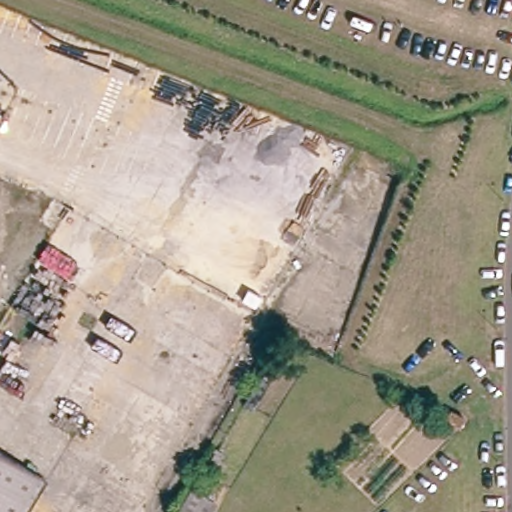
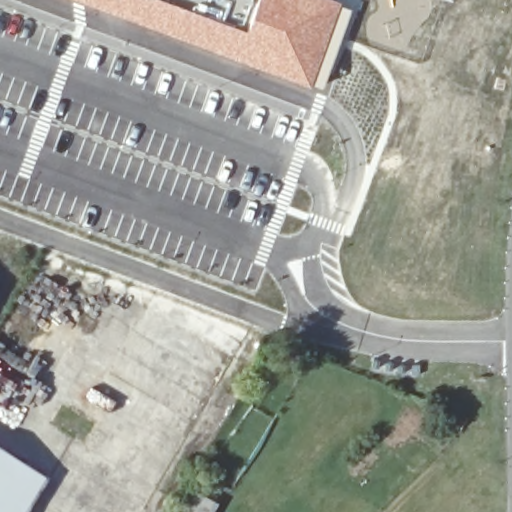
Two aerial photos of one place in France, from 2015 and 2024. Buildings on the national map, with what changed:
new [(245,29),(258,0),(335,0),(354,8),(322,89),(310,86),(274,74),(152,26),(80,0),(170,0),(190,8),(245,29)]
new [(258,0),(245,29),(190,8),(194,0),(258,0)]
unchanged [(46,478),(28,512),(0,512),(0,451),(46,478)]
unchanged [(217,505),(213,512),(180,512),(191,489),(217,505)]

